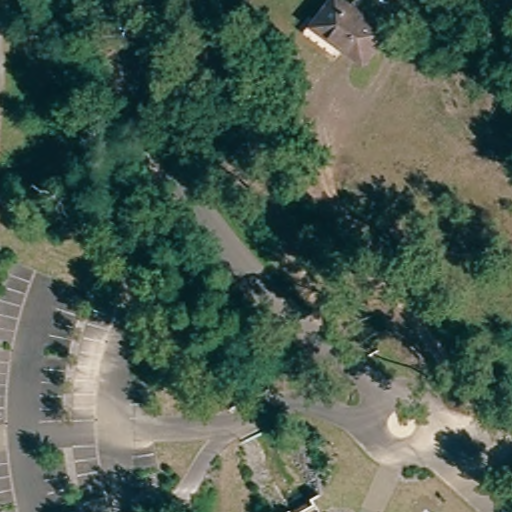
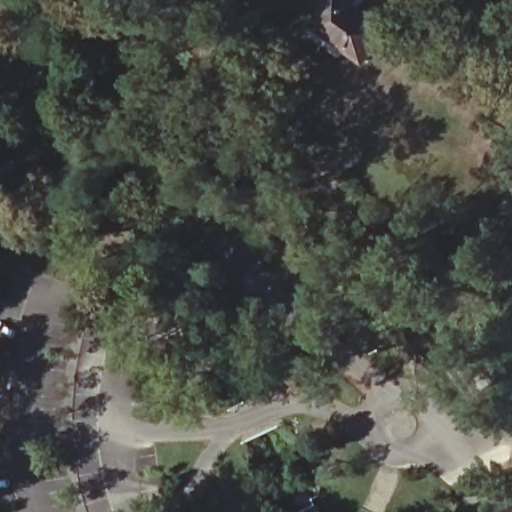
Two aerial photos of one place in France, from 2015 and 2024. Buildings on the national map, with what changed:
unchanged [(313,23),(330,0),(350,0),(388,28),(366,60),(313,23)]

